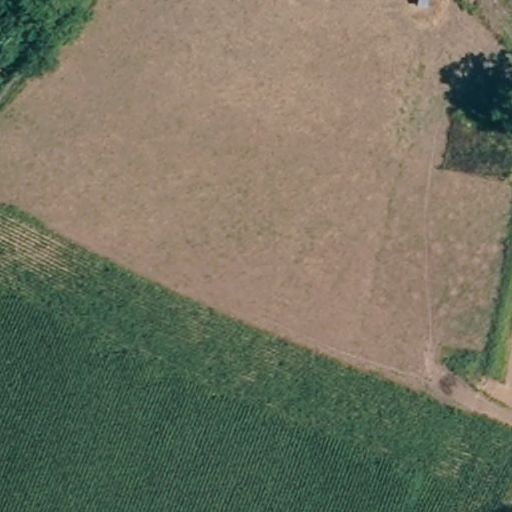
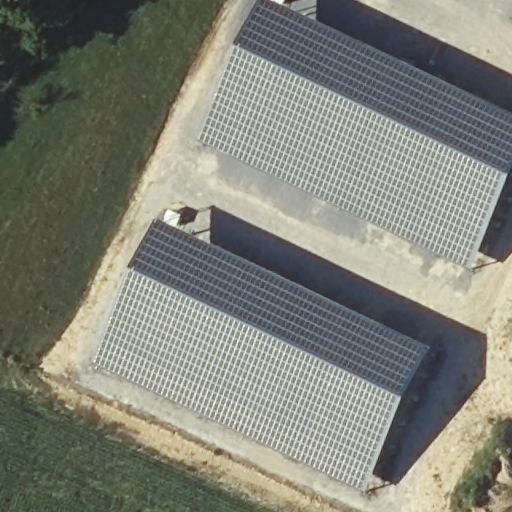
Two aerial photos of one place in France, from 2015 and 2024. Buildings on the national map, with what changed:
new [(200,140),(267,0),(277,0),(512,112),(512,192),(475,272),(200,140)]
new [(369,494),(95,365),(163,219),(438,349),(369,494)]

